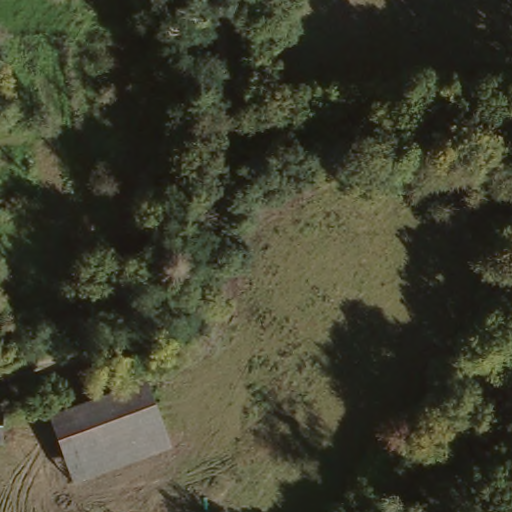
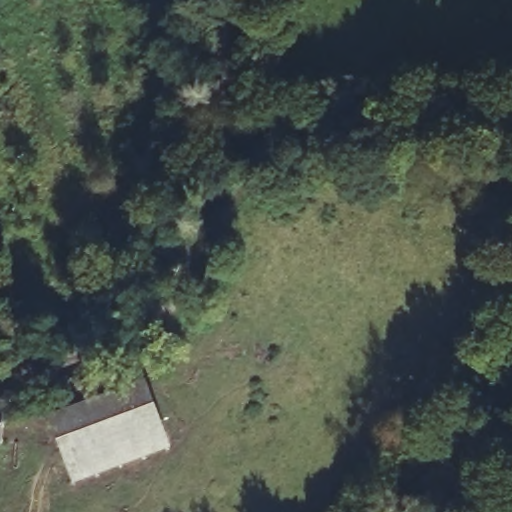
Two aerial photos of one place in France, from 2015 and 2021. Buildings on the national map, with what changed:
unchanged [(54,420),(143,381),(167,439),(79,478),(54,420)]

